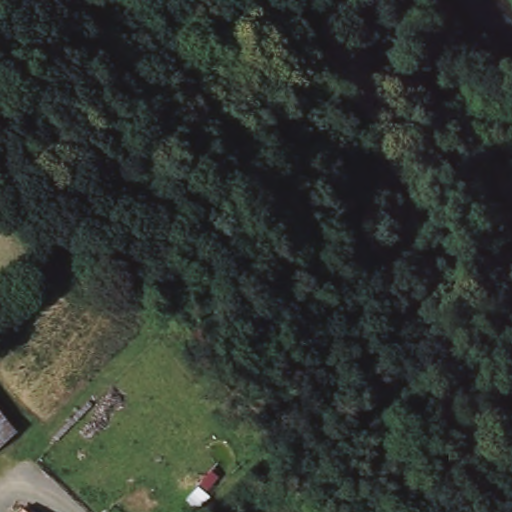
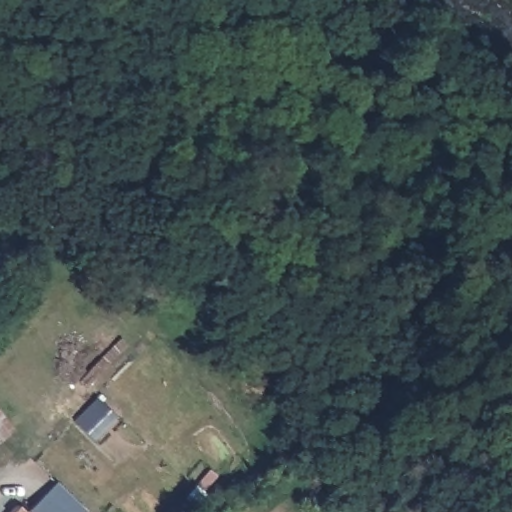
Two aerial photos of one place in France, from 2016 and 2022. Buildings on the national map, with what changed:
unchanged [(18,426),(0,443),(0,407),(18,426)]
new [(87,511),(86,512),(30,512),(29,511),(57,483),(87,511)]
unchanged [(30,512),(15,512),(22,504),(30,512)]

